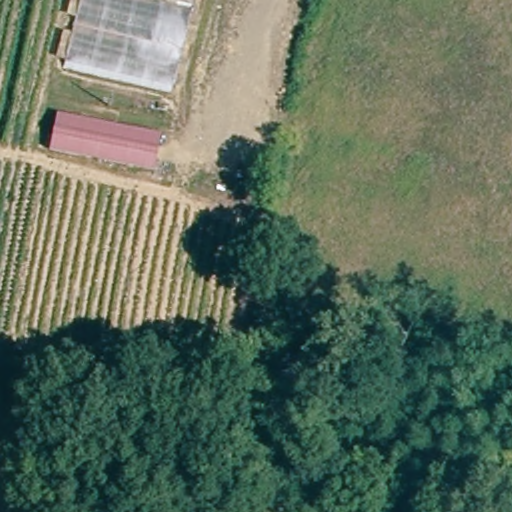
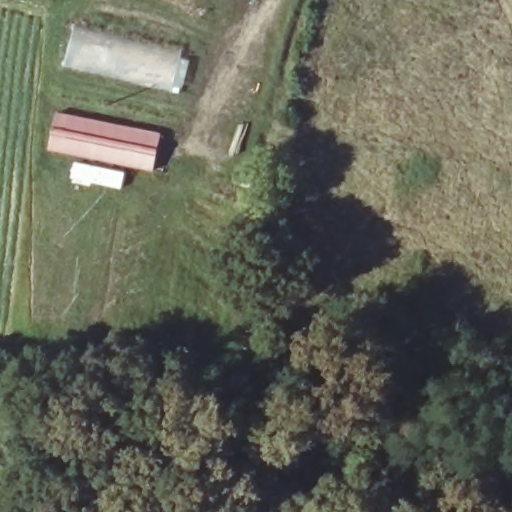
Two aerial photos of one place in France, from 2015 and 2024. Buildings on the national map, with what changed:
demolished [(83,0),(194,0),(174,89),(69,63),(83,0)]
new [(77,26),(184,52),(173,92),(66,67),(77,26)]
unchanged [(162,138),(152,175),(46,147),(56,111),(162,138)]
new [(74,161),(99,166),(96,185),(69,181),(74,161)]

